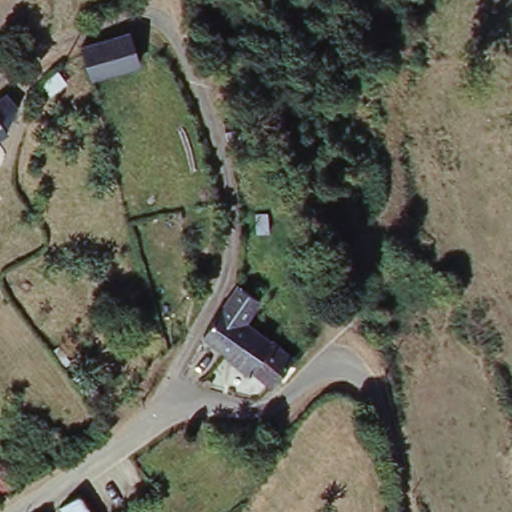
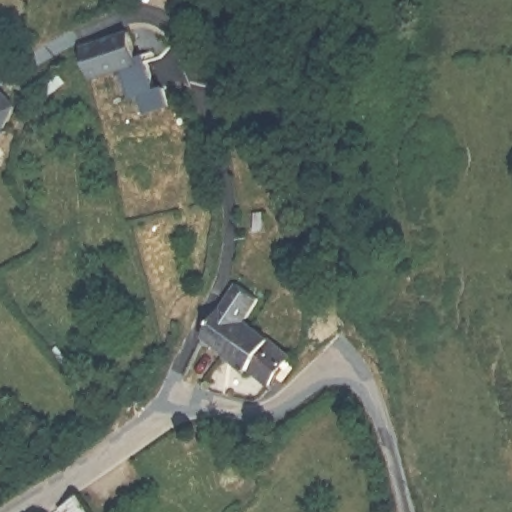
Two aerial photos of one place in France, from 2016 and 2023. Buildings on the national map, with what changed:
unchanged [(138,68),(91,82),(84,50),(129,36),(138,68)]
unchanged [(5,103),(14,112),(3,138),(5,143),(0,146),(0,106),(5,103)]
unchanged [(270,232),(258,232),(257,214),(268,213),(270,232)]
unchanged [(205,339),(237,287),(259,304),(245,323),(253,329),(229,359),(205,339)]
unchanged [(293,361),(271,389),(252,374),(249,377),(228,360),(229,359),(253,329),(293,361)]
unchanged [(14,484),(0,496),(0,464),(14,484)]
unchanged [(80,512),(65,512),(75,504),(80,512)]

